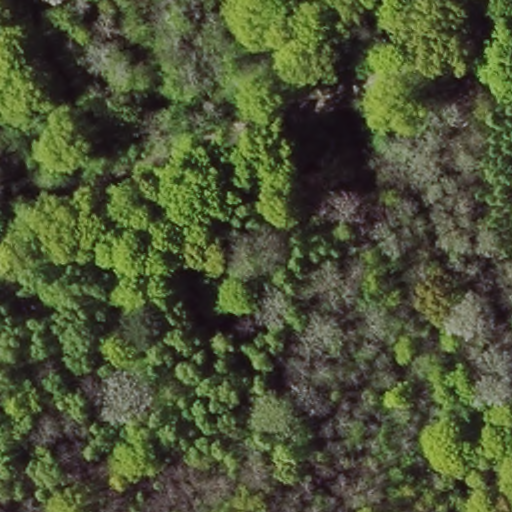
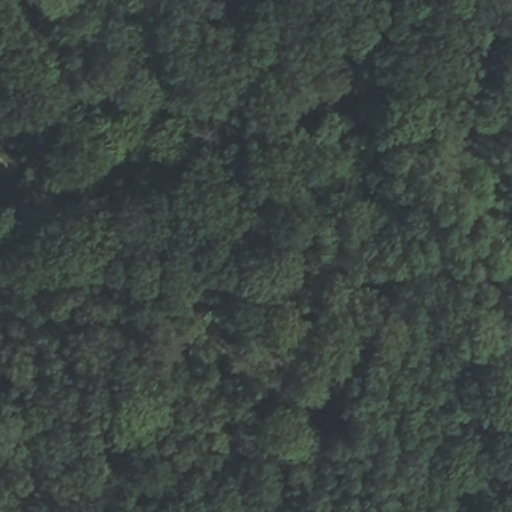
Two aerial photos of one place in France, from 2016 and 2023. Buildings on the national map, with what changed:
[]

